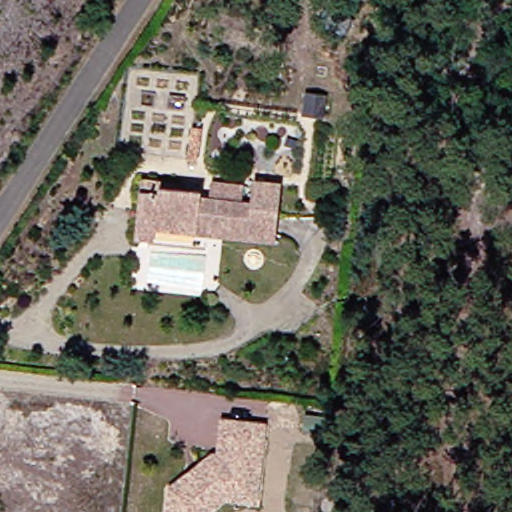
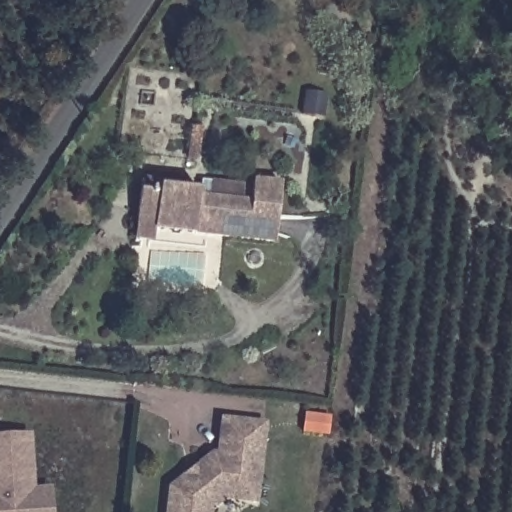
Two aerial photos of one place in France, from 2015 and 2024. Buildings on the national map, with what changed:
unchanged [(129,227),(135,179),(166,182),(165,190),(191,193),(190,197),(243,204),(243,199),(245,180),(270,182),(264,242),(129,227)]
unchanged [(207,512),(162,512),(166,489),(209,456),(215,456),(219,421),(262,426),(255,482),(252,505),(221,501),(207,512)]
new [(35,490),(52,488),(54,512),(0,512),(0,437),(30,435),(35,490)]

